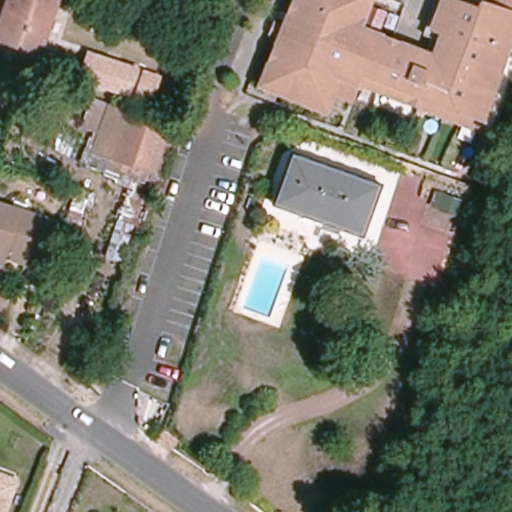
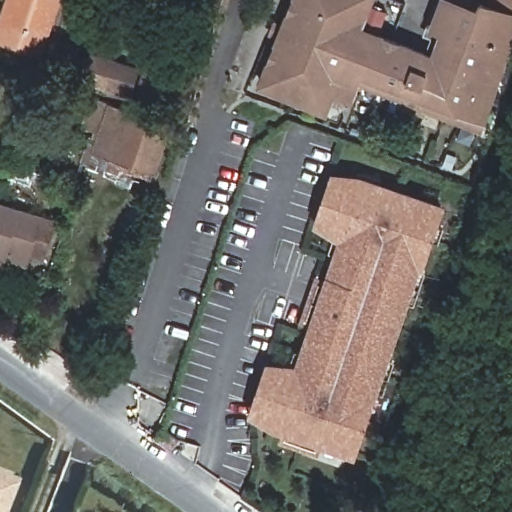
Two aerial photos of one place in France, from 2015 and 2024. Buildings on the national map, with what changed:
unchanged [(41,54),(0,40),(0,26),(9,0),(59,0),(41,54)]
unchanged [(69,4),(66,2),(59,0),(71,0),(69,4)]
unchanged [(363,88),(358,86),(353,100),(300,81),(293,98),(260,85),(295,0),(373,0),(362,27),(434,55),(443,32),(433,28),(443,0),(453,0),(498,15),(503,2),(497,0),(512,0),(512,42),(483,131),(364,84),(363,88)]
unchanged [(113,96),(74,84),(77,75),(86,78),(91,63),(124,74),(119,90),(115,88),(113,96)]
unchanged [(94,152),(100,135),(82,128),(94,97),(111,103),(172,123),(155,172),(140,167),(94,152)]
unchanged [(373,124),(366,141),(340,130),(347,114),(373,124)]
unchanged [(132,186),(97,174),(84,167),(80,161),(82,148),(94,152),(140,167),(132,186)]
demolished [(380,186),(363,233),(278,203),(294,155),(380,186)]
new [(342,240),(317,221),(331,176),(364,177),(445,203),(356,455),(249,415),(267,363),(297,361),(342,240)]
unchanged [(120,221),(123,222),(130,193),(147,197),(138,227),(127,261),(109,255),(120,221)]
unchanged [(0,203),(55,220),(44,258),(30,253),(27,263),(0,255),(0,203)]
unchanged [(170,447),(166,443),(156,436),(162,428),(177,439),(170,447)]
unchanged [(4,512),(0,512),(0,478),(15,483),(4,512)]

